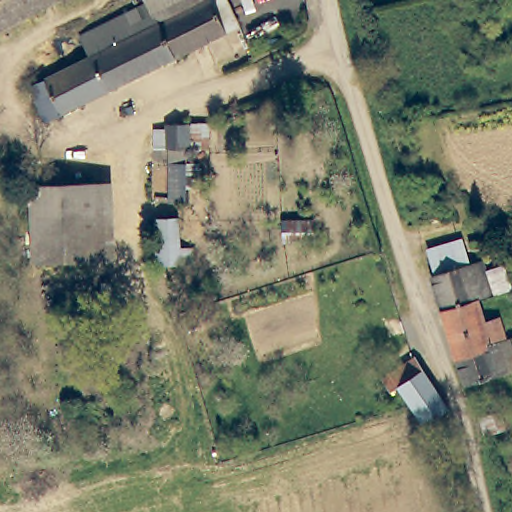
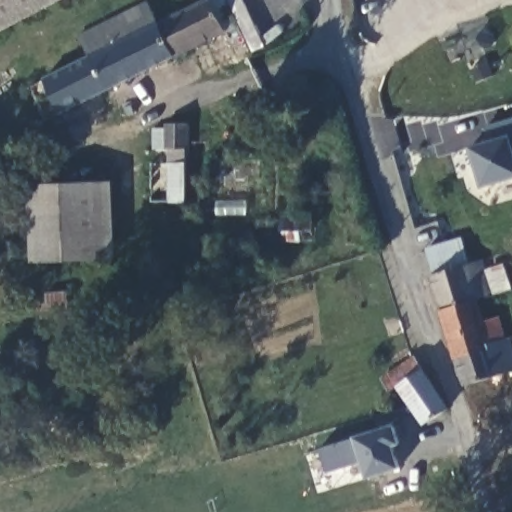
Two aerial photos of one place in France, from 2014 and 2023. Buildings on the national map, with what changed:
unchanged [(0,28),(0,0),(64,0),(1,31),(0,28)]
unchanged [(149,0),(160,22),(207,0),(211,0),(229,0),(235,12),(241,24),(226,31),(106,90),(90,56),(87,46),(80,34),(149,0)]
unchanged [(106,90),(49,117),(32,84),(90,56),(106,90)]
new [(470,148),(487,142),(480,125),(512,116),(512,180),(482,187),(470,148)]
unchanged [(186,189),(187,203),(171,204),(170,151),(167,150),(167,148),(161,149),(160,135),(167,135),(167,125),(171,124),(190,124),(190,130),(199,130),(200,142),(190,144),(191,152),(185,153),(185,171),(200,171),(200,188),(186,189)]
unchanged [(105,182),(106,257),(41,260),(37,183),(105,182)]
unchanged [(315,220),(314,239),(283,240),(283,221),(315,220)]
unchanged [(488,293),(477,296),(441,307),(431,275),(433,273),(426,247),(458,237),(465,262),(478,258),(488,293)]
unchanged [(512,344),(512,368),(465,383),(456,357),(450,335),(441,307),(477,296),(483,315),(485,319),(497,314),(506,337),(510,335),(510,336),(512,344)]
unchanged [(410,404),(396,387),(398,385),(390,372),(413,353),(424,368),(436,384),(452,405),(445,410),(428,423),(426,425),(410,404)]
new [(360,436),(397,424),(402,445),(396,446),(402,470),(367,478),(363,463),(327,474),(320,448),(360,436)]

